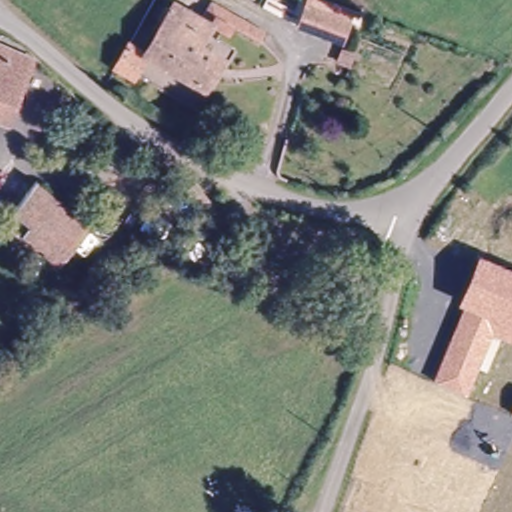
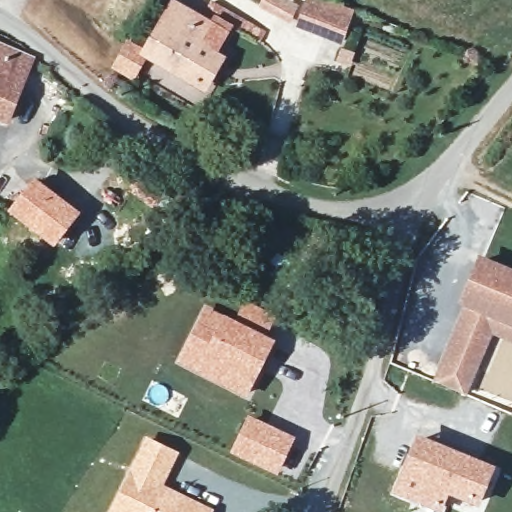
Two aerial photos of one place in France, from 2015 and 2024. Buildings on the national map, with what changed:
unchanged [(131,39),(137,44),(170,0),(178,0),(202,19),(230,40),(239,46),(222,69),(206,56),(188,81),(151,55),(136,81),(116,72),(131,39)]
unchanged [(214,0),(267,26),(261,40),(237,28),(230,40),(202,19),(213,0),(214,0)]
unchanged [(354,20),(343,45),(295,26),(305,1),(354,20)]
unchanged [(32,61),(3,126),(0,125),(0,46),(32,61)]
new [(141,174),(166,192),(153,210),(127,190),(141,174)]
new [(34,177),(81,213),(53,248),(6,212),(34,177)]
unchanged [(512,341),(490,332),(465,391),(433,377),(462,306),(457,304),(478,254),(512,270),(512,341)]
new [(177,363),(206,309),(235,321),(245,302),(274,318),(265,336),(273,341),(247,399),(177,363)]
unchanged [(512,410),(512,414),(510,414),(512,410)]
new [(248,415),(295,438),(276,475),(231,453),(248,415)]
new [(476,502),(445,487),(437,505),(397,486),(416,449),(423,436),(447,448),(492,470),(491,472),(477,500),(476,502)]
new [(164,486),(213,511),(212,512),(111,512),(146,437),(179,454),(164,486)]

